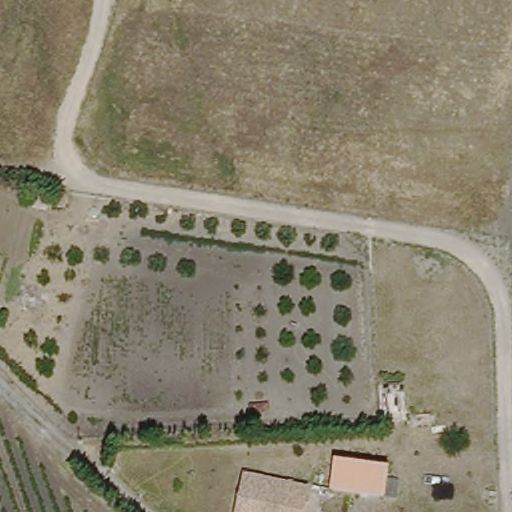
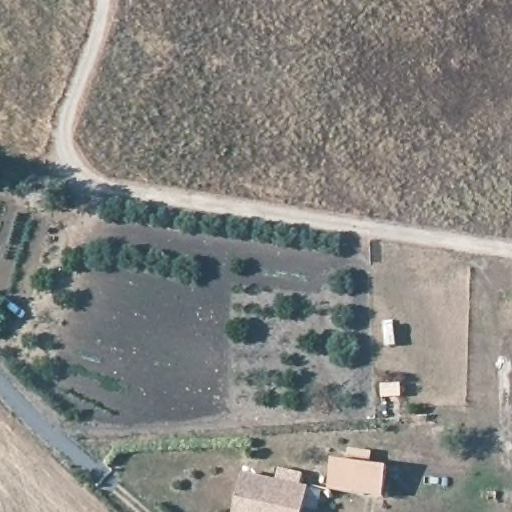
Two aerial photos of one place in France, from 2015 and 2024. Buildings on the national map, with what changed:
unchanged [(383,496),(330,485),(337,455),(390,467),(383,496)]
unchanged [(237,512),(241,490),(271,495),(311,501),(309,512),(237,512)]

